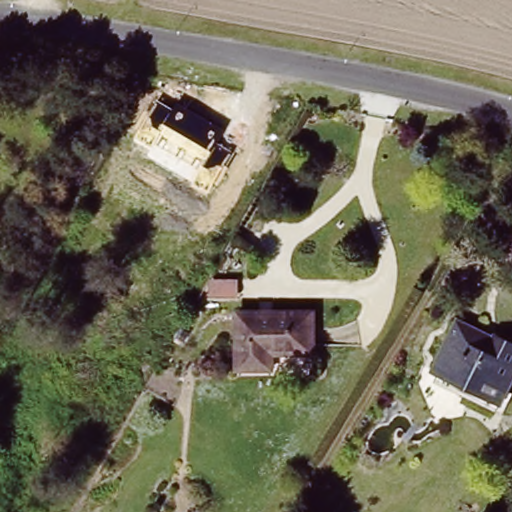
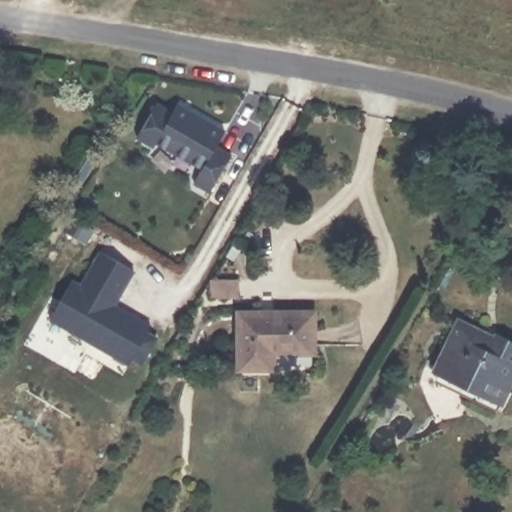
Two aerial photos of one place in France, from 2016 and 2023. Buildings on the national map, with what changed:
unchanged [(158,100),(175,109),(177,104),(223,131),(217,142),(233,150),(208,194),(192,184),(201,169),(156,144),(155,146),(135,136),(158,100)]
new [(127,364),(49,319),(71,277),(81,283),(98,249),(133,272),(115,304),(150,325),(147,330),(157,337),(141,364),(131,359),(127,364)]
unchanged [(320,358),(246,358),(246,307),(320,307),(320,358)]
unchanged [(503,403),(436,370),(461,319),(496,337),(498,333),(512,340),(512,384),(503,403)]

